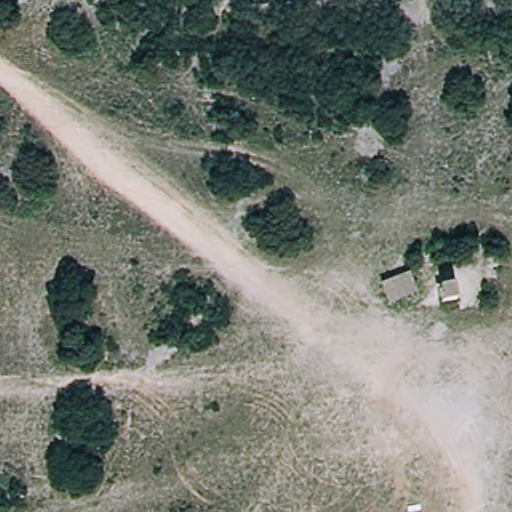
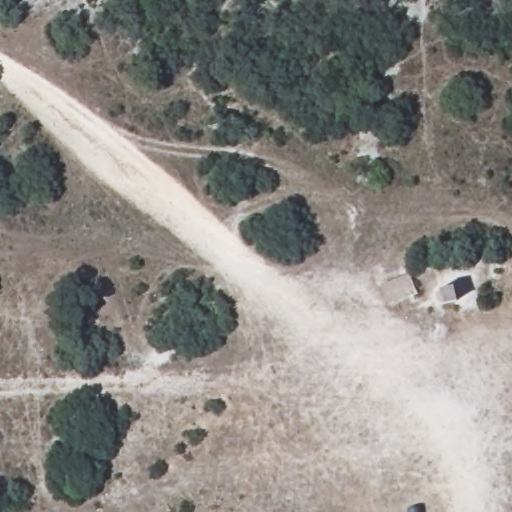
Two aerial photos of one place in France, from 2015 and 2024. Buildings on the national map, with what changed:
unchanged [(406,276),(422,300),(394,316),(378,288),(406,276)]
unchanged [(437,287),(457,284),(461,302),(441,306),(437,287)]

